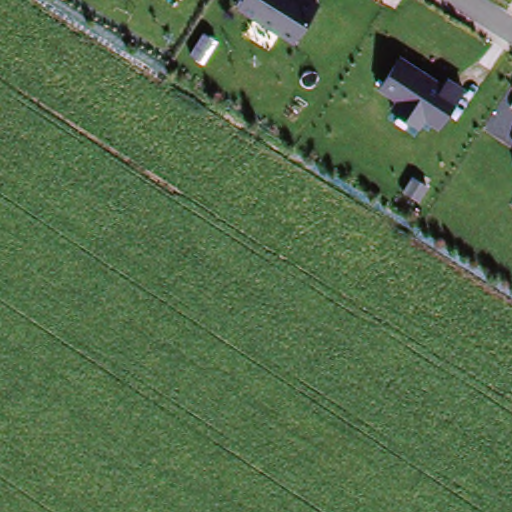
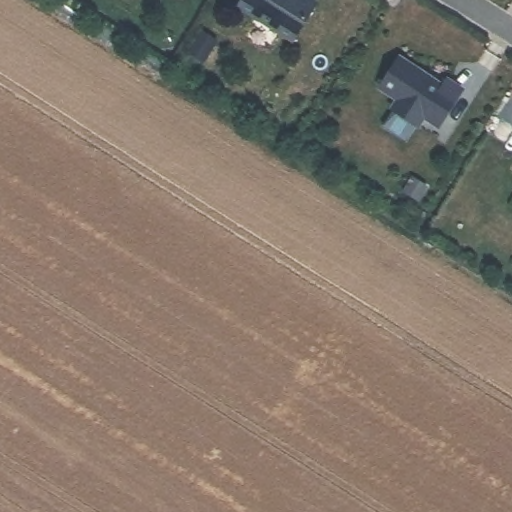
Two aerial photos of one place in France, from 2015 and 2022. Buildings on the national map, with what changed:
unchanged [(292,43),(235,6),(239,0),(314,0),(318,3),(292,43)]
unchanged [(439,130),(424,120),(419,129),(389,111),(395,102),(376,91),(399,54),(444,83),(448,77),(465,89),(439,130)]

